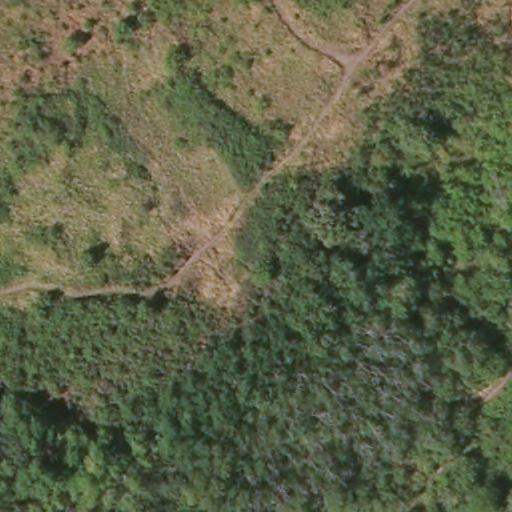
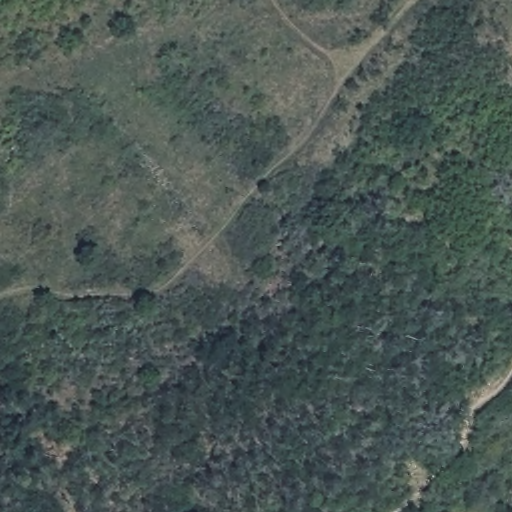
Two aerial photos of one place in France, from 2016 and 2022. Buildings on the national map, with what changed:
[]

